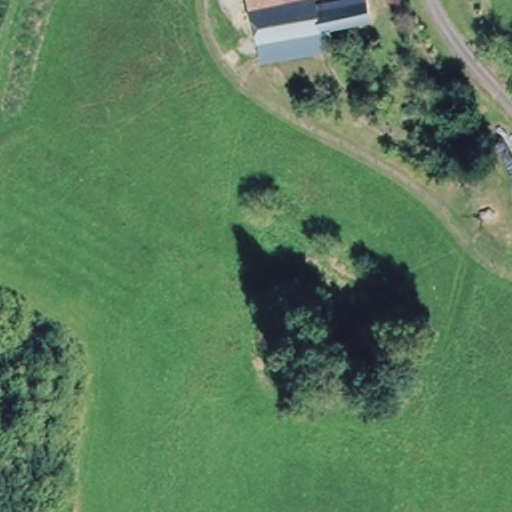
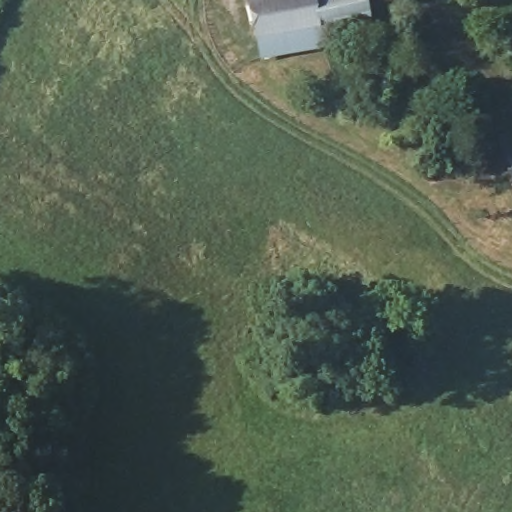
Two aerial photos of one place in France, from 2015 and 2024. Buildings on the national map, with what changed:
unchanged [(362,0),(363,26),(313,27),(256,30),(253,0),(362,0)]
unchanged [(258,55),(256,30),(313,27),(313,38),(322,37),(324,53),(277,55),(258,55)]

